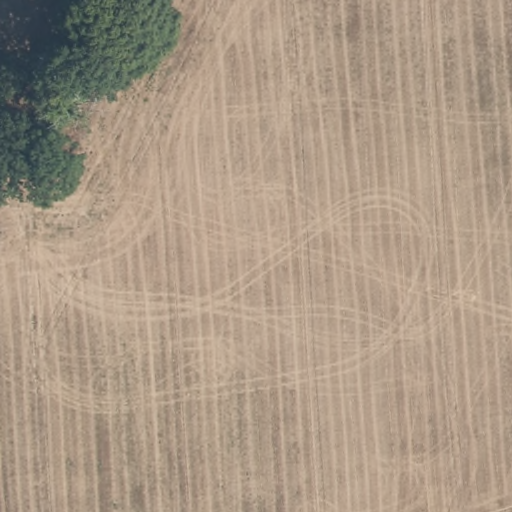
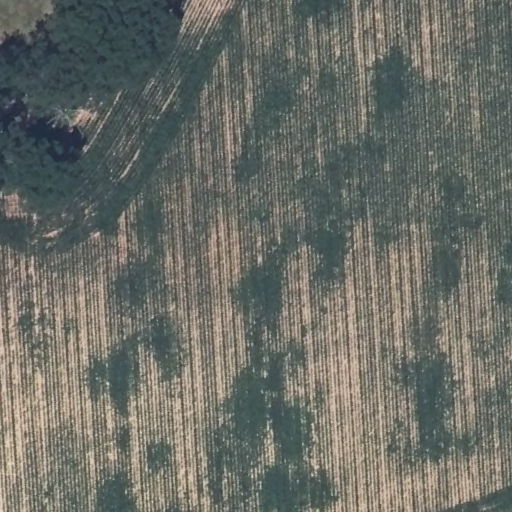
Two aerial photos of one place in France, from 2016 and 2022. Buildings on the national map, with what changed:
unchanged [(68,61),(40,107),(20,96),(47,49),(68,61)]

